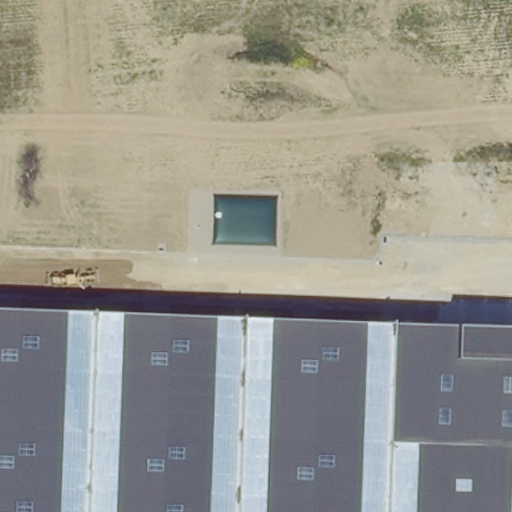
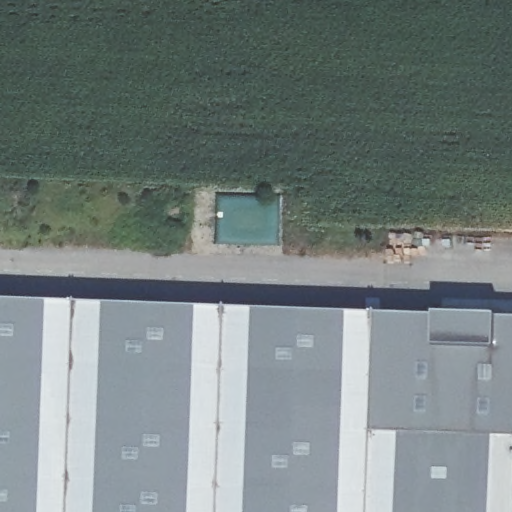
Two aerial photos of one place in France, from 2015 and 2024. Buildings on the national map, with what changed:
unchanged [(0,512),(0,310),(512,329),(512,512),(0,512)]

